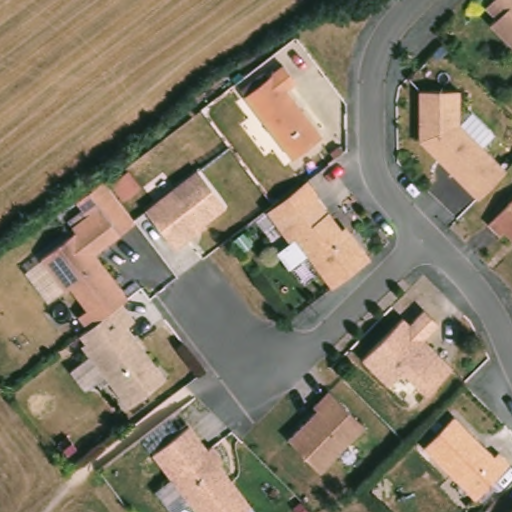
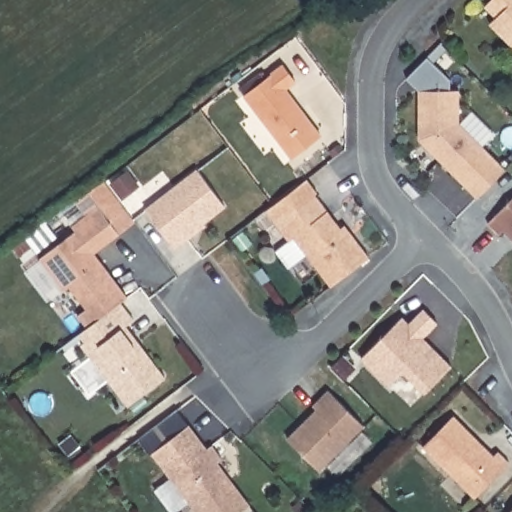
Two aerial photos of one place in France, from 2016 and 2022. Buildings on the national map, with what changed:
unchanged [(490,20),(479,9),(487,0),(511,0),(512,2),(512,54),(484,26),(490,20)]
unchanged [(288,157),(240,94),(279,65),(291,80),(280,89),(316,136),(288,157)]
unchanged [(413,140),(413,91),(453,91),(453,124),(500,171),(483,187),(471,199),(444,171),(434,161),(413,140)]
unchanged [(183,236),(170,247),(141,209),(193,169),(220,205),(198,221),(200,224),(183,236)]
unchanged [(493,235),(482,224),(512,193),(512,246),(497,230),(493,235)]
unchanged [(289,237),(284,240),(271,224),(310,194),(336,228),(340,225),(344,231),(364,257),(326,285),(289,237)]
unchanged [(64,283),(59,287),(35,255),(70,229),(66,224),(93,204),(114,232),(89,251),(93,256),(113,282),(81,306),(64,283)]
unchanged [(80,332),(121,301),(134,318),(126,325),(135,336),(165,376),(128,405),(108,378),(82,343),(86,340),(80,332)]
unchanged [(398,377),(393,377),(382,389),(355,362),(396,321),(403,328),(417,313),(431,327),(417,342),(425,351),(445,370),(418,397),(398,377)]
unchanged [(313,474),(281,442),(311,413),(307,409),(323,394),(358,430),(313,474)]
unchanged [(468,502),(417,450),(447,420),(487,460),(492,456),(503,467),(468,502)]
unchanged [(239,512),(191,512),(166,477),(208,446),(218,460),(213,464),(245,508),(239,512)]
unchanged [(512,502),(512,512),(502,512),(512,502)]

